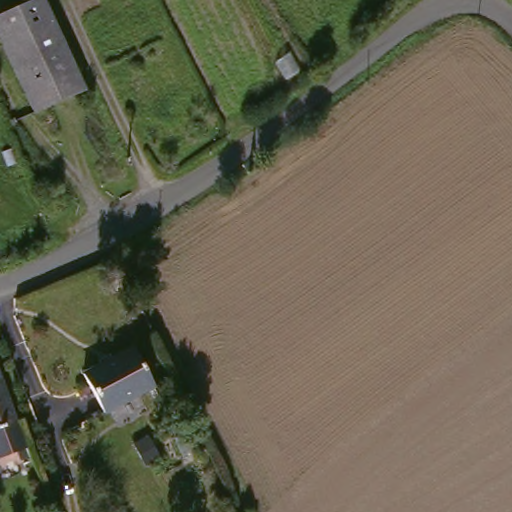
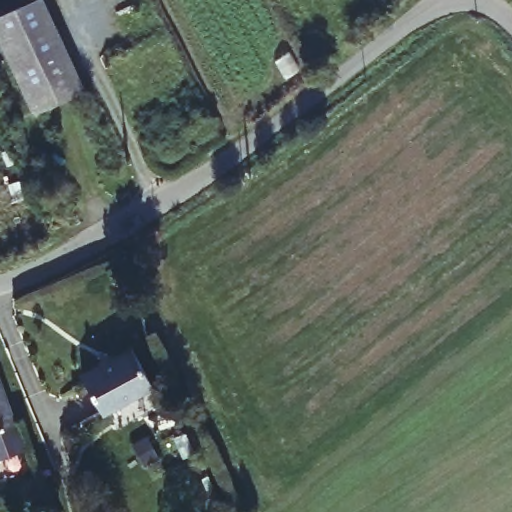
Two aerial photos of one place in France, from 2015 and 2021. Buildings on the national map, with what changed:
unchanged [(43,113),(0,19),(40,0),(55,0),(97,89),(43,113)]
unchanged [(0,273),(0,260),(1,273),(0,273)]
unchanged [(91,377),(141,350),(162,389),(113,416),(91,377)]
unchanged [(30,449),(0,459),(0,363),(21,421),(30,449)]

